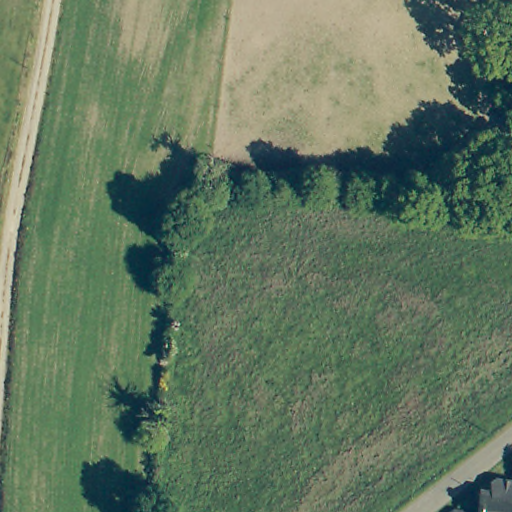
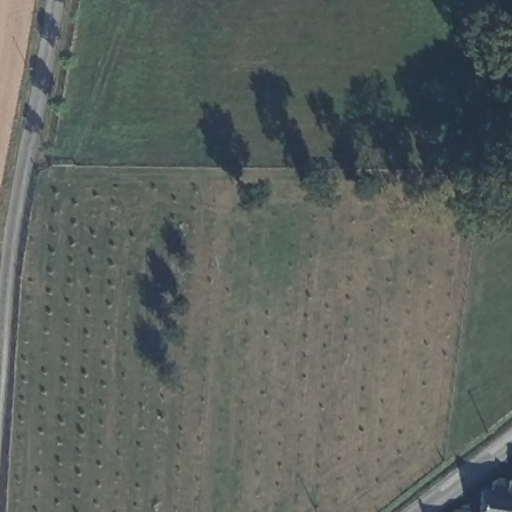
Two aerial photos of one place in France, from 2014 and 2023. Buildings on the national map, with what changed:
unchanged [(512,485),(512,512),(490,512),(493,485),(512,485)]

